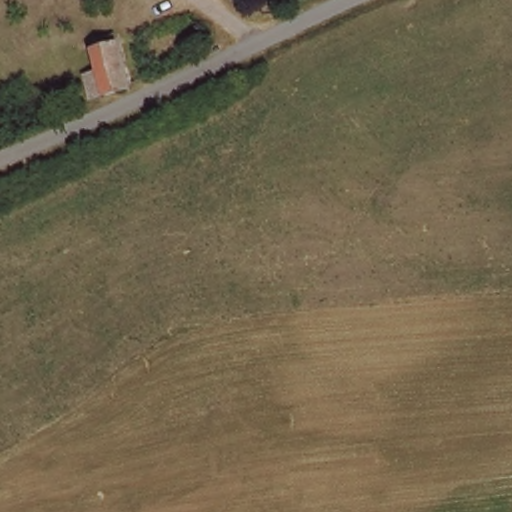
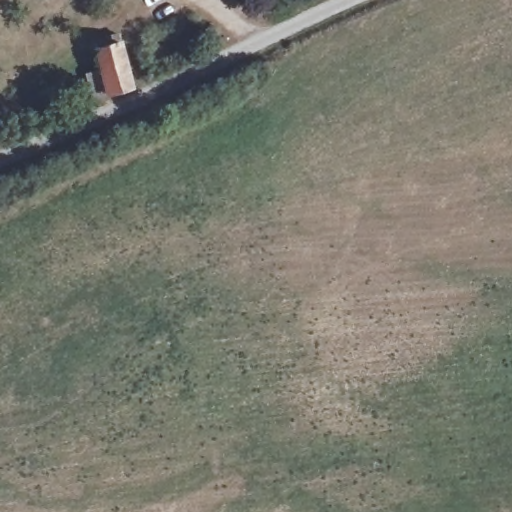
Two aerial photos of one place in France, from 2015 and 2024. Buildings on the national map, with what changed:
unchanged [(94,110),(88,84),(105,80),(97,46),(123,41),(135,92),(94,110)]

